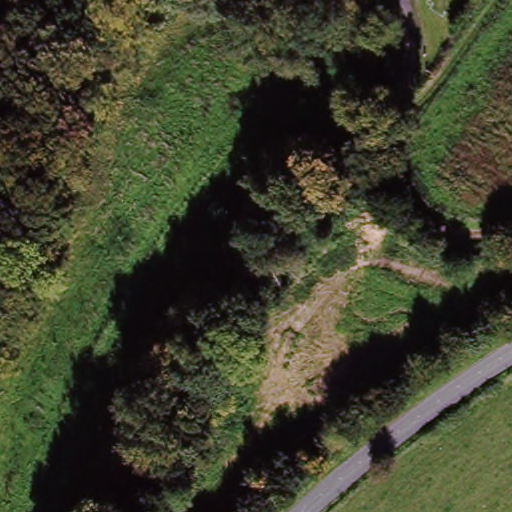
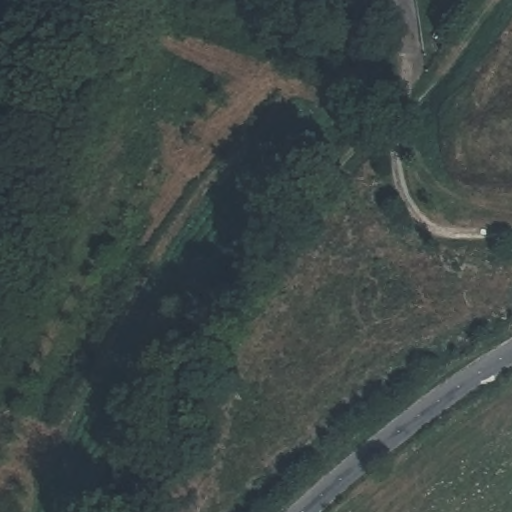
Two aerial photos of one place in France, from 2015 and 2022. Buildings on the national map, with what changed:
[]

